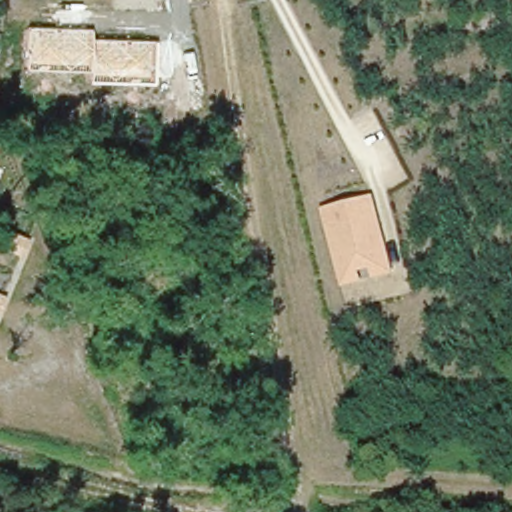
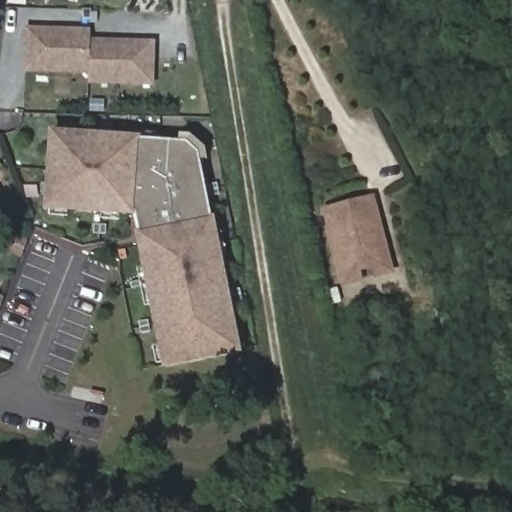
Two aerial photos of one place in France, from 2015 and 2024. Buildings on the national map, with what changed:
unchanged [(151,85),(84,83),(84,72),(21,70),(22,26),(90,29),(90,40),(154,42),(151,85)]
new [(134,215),(44,210),(49,130),(139,135),(139,140),(178,141),(179,133),(190,134),(205,147),(207,159),(199,160),(211,218),(214,217),(241,353),(162,369),(134,233),(139,232),(134,215)]
unchanged [(396,271),(344,284),(321,210),(375,192),(396,271)]

